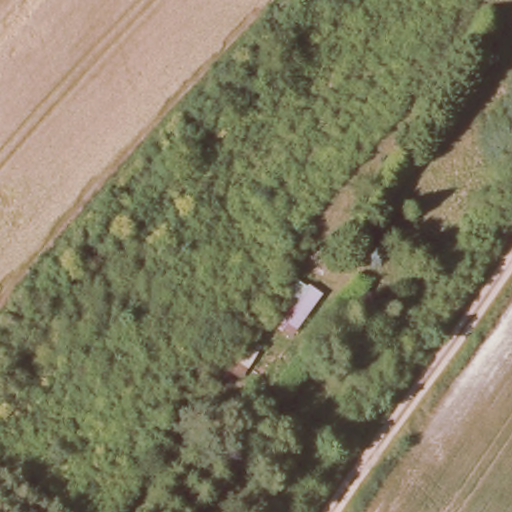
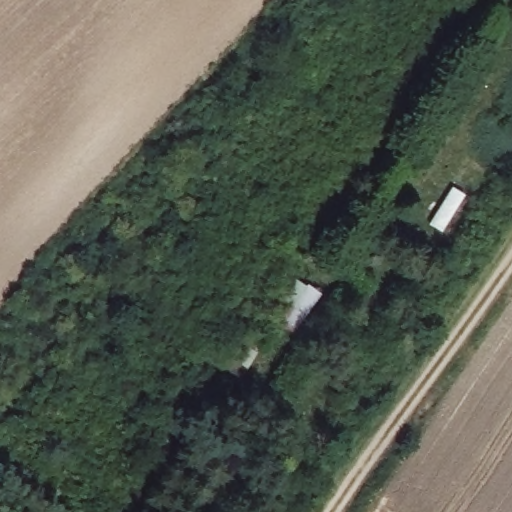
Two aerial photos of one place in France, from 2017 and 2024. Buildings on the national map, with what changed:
unchanged [(295,336),(269,317),(294,279),(323,299),(295,336)]
unchanged [(246,373),(229,361),(245,336),(265,350),(246,373)]

